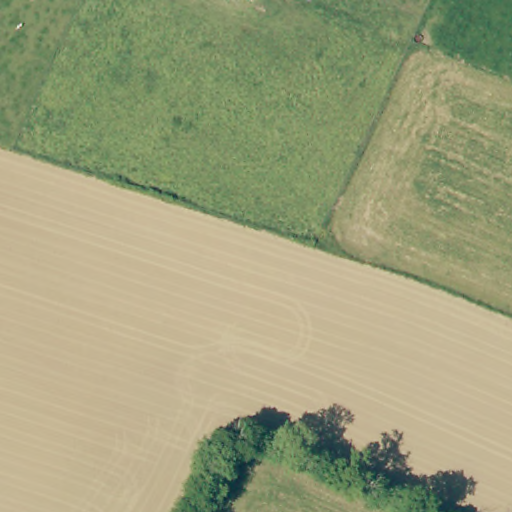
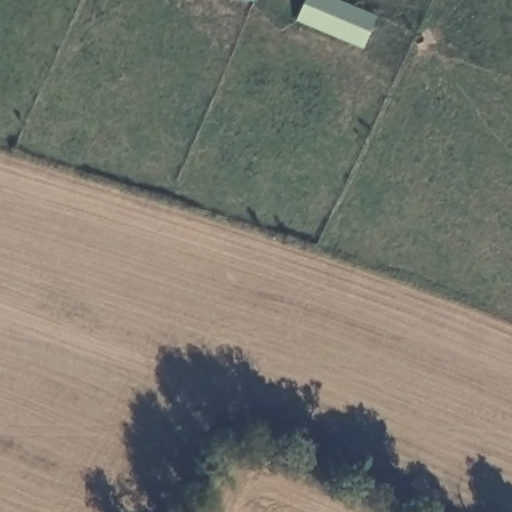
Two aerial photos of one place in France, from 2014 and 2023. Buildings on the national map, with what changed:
new [(362,48),(295,20),(302,0),(339,0),(375,15),(362,48)]

